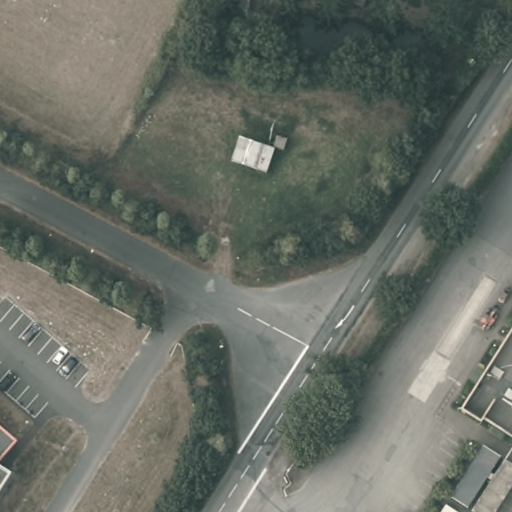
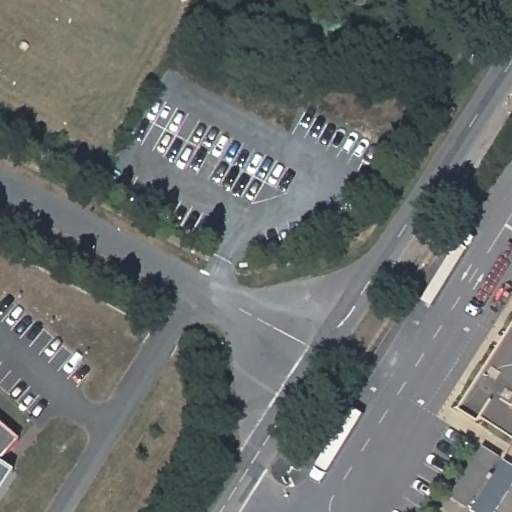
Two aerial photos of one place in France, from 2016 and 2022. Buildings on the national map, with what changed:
unchanged [(280,44),(222,34),(224,11),(283,20),(280,44)]
unchanged [(232,160),(238,135),(276,146),(269,172),(232,160)]
unchanged [(512,435),(462,403),(512,324),(512,435)]

